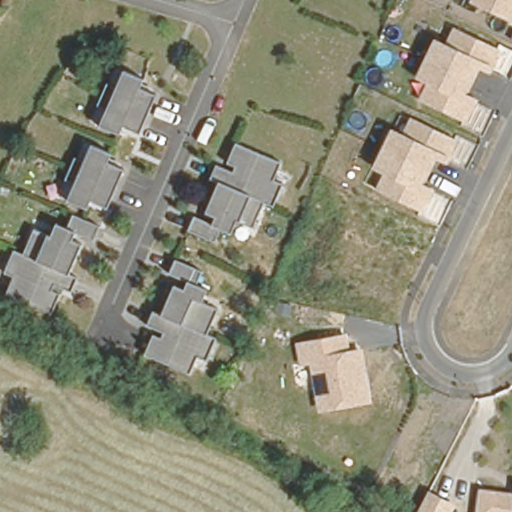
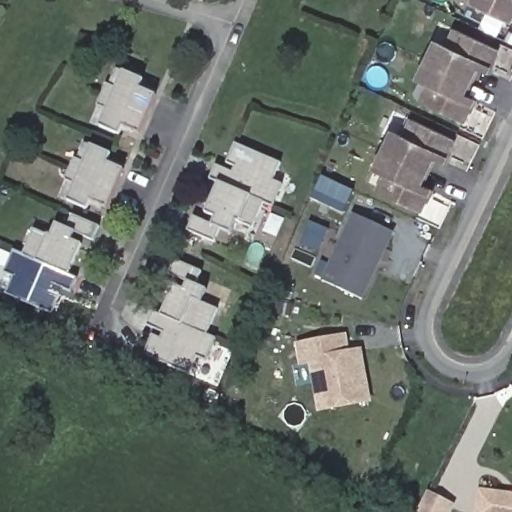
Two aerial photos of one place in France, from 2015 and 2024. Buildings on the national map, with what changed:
unchanged [(471,0),(512,0),(512,22),(469,2),(471,0)]
unchanged [(492,72),(481,68),(467,94),(478,99),(466,122),(418,101),(427,83),(416,78),(436,38),(448,43),(455,27),(501,49),(492,72)]
unchanged [(102,107),(99,106),(109,84),(111,85),(118,68),(125,71),(146,80),(142,88),(159,95),(142,135),(126,128),(122,136),(101,127),(95,124),(102,107)]
unchanged [(448,164),(436,159),(424,184),(435,189),(422,210),(377,188),(384,175),(373,169),(393,129),(403,133),(411,120),(459,141),(448,164)]
unchanged [(272,205),(263,201),(252,226),(235,219),(230,231),(219,226),(213,240),(186,228),(192,213),(211,221),(214,214),(204,210),(217,180),(209,176),(216,161),(232,168),(235,163),(227,159),(235,140),(281,160),(274,178),(283,182),(272,205)]
unchanged [(70,183),(68,182),(77,159),(79,160),(86,144),(94,147),(114,155),(111,164),(127,171),(110,210),(94,203),(90,211),(70,203),(63,200),(70,183)]
unchanged [(92,239),(73,231),(70,238),(80,242),(67,272),(75,276),(68,291),(52,284),(49,289),(57,293),(49,312),(3,292),(11,274),(1,270),(12,247),(21,251),(32,226),(49,233),(54,221),(65,226),(71,212),(98,224),(92,239)]
new [(321,280),(352,213),(373,222),(394,232),(363,299),(342,290),(321,280)]
unchanged [(210,305),(226,312),(215,337),(224,342),(214,365),(205,360),(197,378),(151,357),(159,338),(168,342),(170,336),(153,329),(160,313),(169,317),(182,287),(192,292),(195,284),(177,276),(183,262),(211,274),(205,287),(215,292),(210,305)]
unchanged [(351,349),(363,347),(373,402),(319,411),(310,365),(301,367),(296,343),(348,333),(351,349)]
unchanged [(512,492),(512,512),(476,512),(478,489),(512,492)]
unchanged [(416,512),(428,490),(457,504),(452,512),(416,512)]

